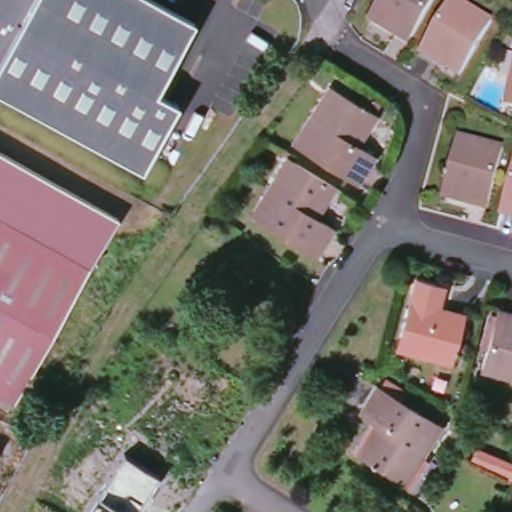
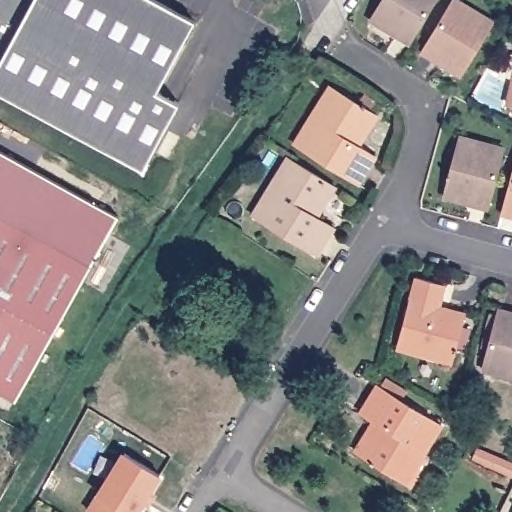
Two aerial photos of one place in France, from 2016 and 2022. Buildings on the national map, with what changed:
unchanged [(157,93),(180,105),(143,172),(0,94),(0,0),(154,0),(195,23),(157,93)]
unchanged [(391,32),(370,20),(382,0),(436,0),(410,41),(392,30),(391,32)]
unchanged [(440,63),(442,60),(423,50),(453,0),(458,0),(492,21),(460,76),(440,63)]
unchanged [(375,156),(358,184),(293,144),(313,113),(330,86),(336,91),(377,116),(359,146),(375,156)]
unchanged [(507,108),(512,87),(512,109),(507,108)]
unchanged [(489,205),(468,200),(467,203),(443,198),(460,136),(503,148),(489,205)]
unchanged [(0,393),(0,151),(120,216),(18,403),(0,393)]
unchanged [(315,216),(333,227),(317,254),(252,215),(271,184),(288,158),(294,161),(335,187),(315,216)]
unchanged [(503,211),(512,179),(512,212),(503,211)]
unchanged [(437,316),(462,323),(452,368),(398,354),(416,282),(443,289),(437,316)]
unchanged [(482,370),(497,313),(512,316),(512,378),(482,370)]
unchanged [(400,483),(358,458),(377,427),(360,417),(377,390),(381,393),(387,383),(407,395),(400,405),(442,430),(422,460),(406,486),(400,483)]
new [(162,476),(152,491),(157,496),(150,509),(142,505),(138,512),(87,512),(85,511),(96,495),(120,452),(162,476)]

